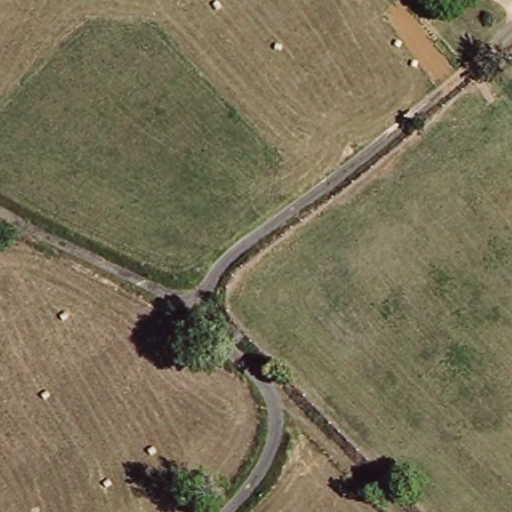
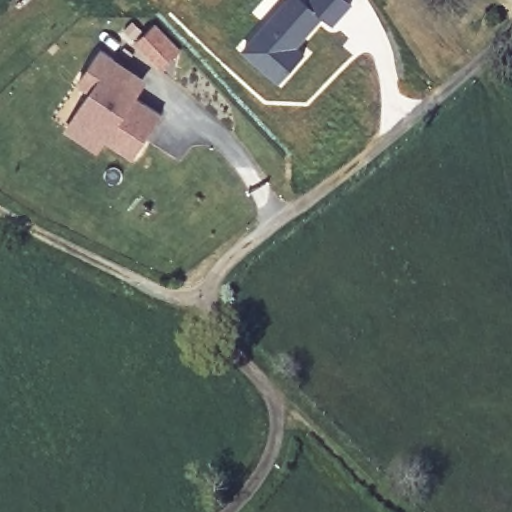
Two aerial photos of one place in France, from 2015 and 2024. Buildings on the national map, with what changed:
new [(262,19),(260,17),(276,0),(307,0),(323,17),(321,19),(299,45),(305,51),(280,79),(240,44),(262,19)]
new [(352,2),(330,27),(321,19),(323,17),(307,0),(350,0),(352,2)]
new [(155,22),(181,50),(162,68),(134,39),(155,22)]
new [(150,78),(139,95),(164,112),(135,156),(107,138),(100,152),(68,132),(90,91),(79,83),(102,46),(150,78)]

